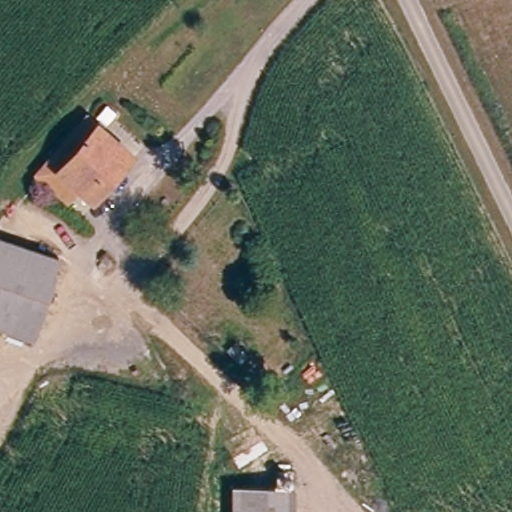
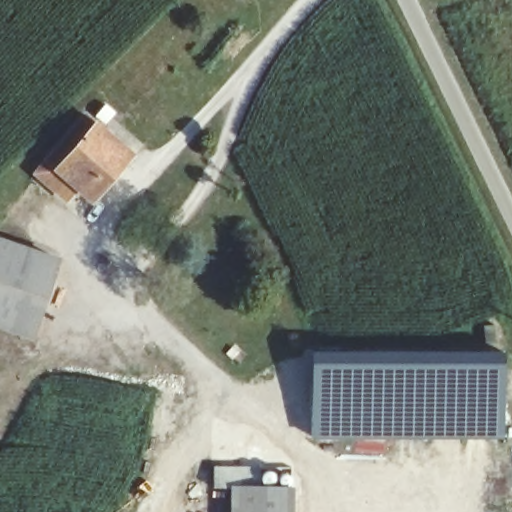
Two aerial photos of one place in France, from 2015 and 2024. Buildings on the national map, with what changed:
new [(97,119),(137,151),(92,202),(79,190),(70,204),(34,173),(85,111),(97,119)]
demolished [(110,141),(117,150),(75,197),(41,168),(85,113),(107,138),(110,141)]
unchanged [(0,324),(0,237),(54,253),(34,325),(32,331),(0,324)]
new [(314,356),(314,354),(333,353),(333,350),(398,349),(507,351),(507,358),(507,438),(402,439),(382,441),(310,439),(310,356),(314,356)]
unchanged [(292,512),(231,512),(232,485),(292,484),(292,512)]

